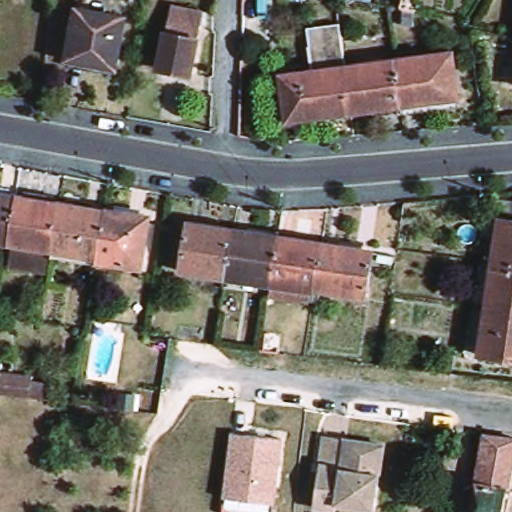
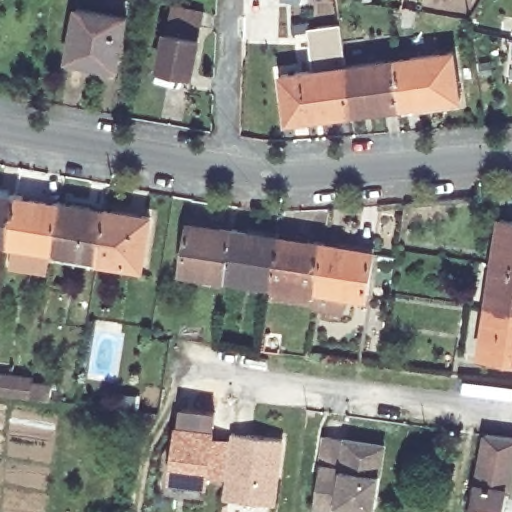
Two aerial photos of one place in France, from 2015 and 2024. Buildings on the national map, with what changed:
unchanged [(126,18),(116,69),(65,60),(76,8),(126,18)]
unchanged [(201,17),(190,77),(160,72),(172,11),(201,17)]
unchanged [(286,123),(281,75),(312,71),(309,46),(307,29),(340,25),(345,66),(351,115),(286,123)]
unchanged [(400,108),(394,59),(453,52),(459,100),(400,108)]
unchanged [(394,59),(400,108),(351,115),(345,66),(394,59)]
unchanged [(8,246),(0,245),(0,193),(16,196),(8,246)]
unchanged [(16,196),(61,203),(53,253),(8,246),(16,196)]
unchanged [(61,203),(106,210),(98,260),(53,253),(61,203)]
unchanged [(106,208),(151,215),(141,269),(98,262),(98,260),(106,210),(106,208)]
unchanged [(499,219),(512,221),(512,266),(493,263),(499,219)]
unchanged [(225,278),(181,271),(189,221),(232,228),(225,278)]
unchanged [(278,235),(270,285),(225,278),(232,228),(278,235)]
unchanged [(313,292),(270,285),(278,235),(321,242),(313,289),(313,292)]
unchanged [(372,250),(365,297),(313,289),(321,242),(372,250)]
unchanged [(512,266),(512,311),(486,307),(493,263),(512,266)]
unchanged [(479,356),(486,307),(512,311),(512,361),(479,356)]
unchanged [(29,398),(0,395),(0,374),(32,378),(31,385),(50,387),(48,401),(29,398)]
new [(177,423),(218,427),(216,438),(230,439),(226,477),(210,475),(209,485),(170,481),(177,423)]
unchanged [(231,431),(284,437),(278,504),(224,497),(231,431)]
unchanged [(511,486),(508,486),(504,512),(471,512),(484,436),(512,440),(512,478),(511,486)]
unchanged [(317,502),(328,439),(387,449),(376,512),(373,512),(339,506),(331,511),(316,508),(317,502)]

